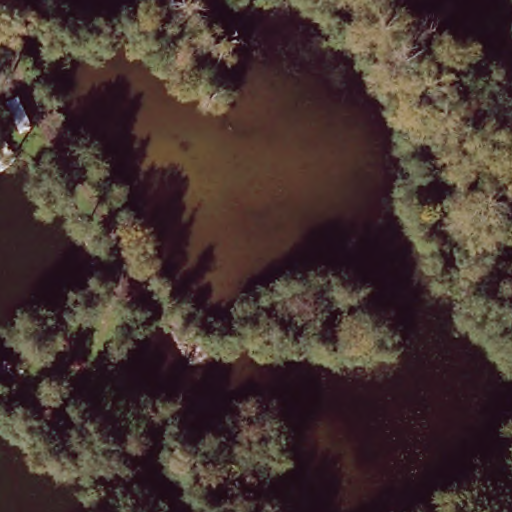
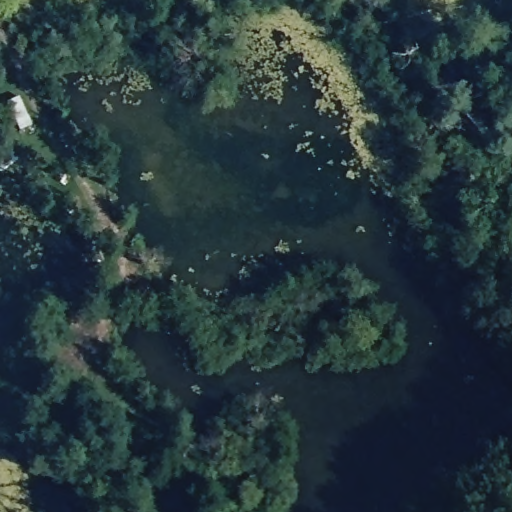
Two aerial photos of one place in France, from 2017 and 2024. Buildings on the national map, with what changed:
unchanged [(9,106),(28,95),(37,121),(20,133),(9,106)]
unchanged [(473,512),(449,512),(448,510),(465,500),(473,512)]

